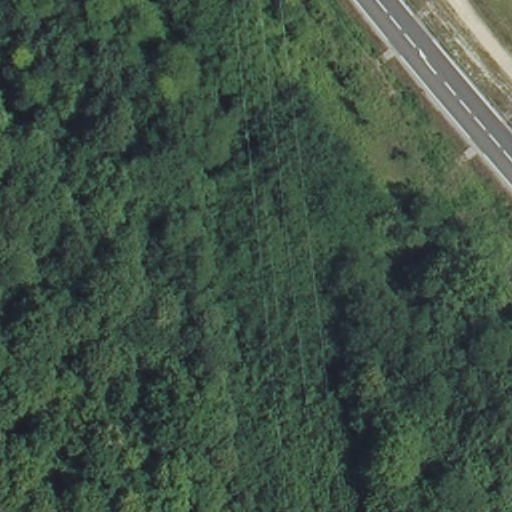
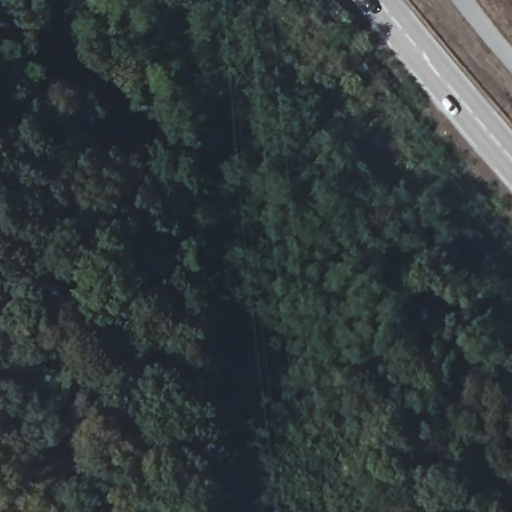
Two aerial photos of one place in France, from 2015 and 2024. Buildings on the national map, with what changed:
[]

